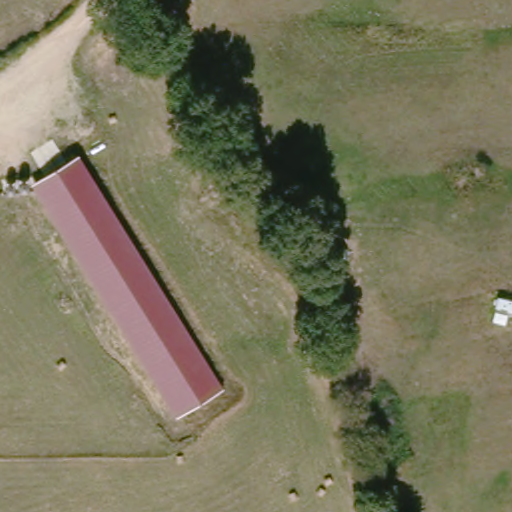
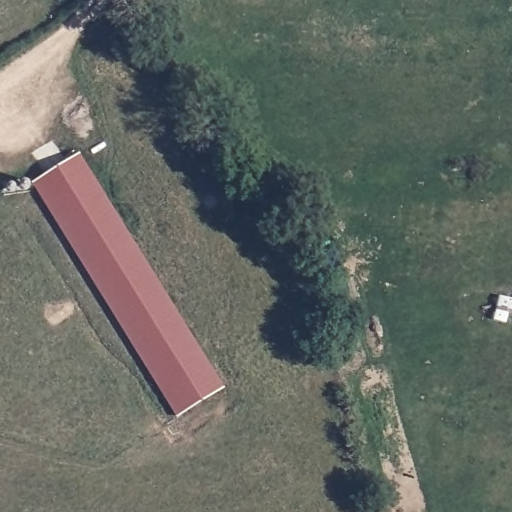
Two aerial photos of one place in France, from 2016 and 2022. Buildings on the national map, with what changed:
unchanged [(225,389),(177,418),(32,183),(78,155),(225,389)]

